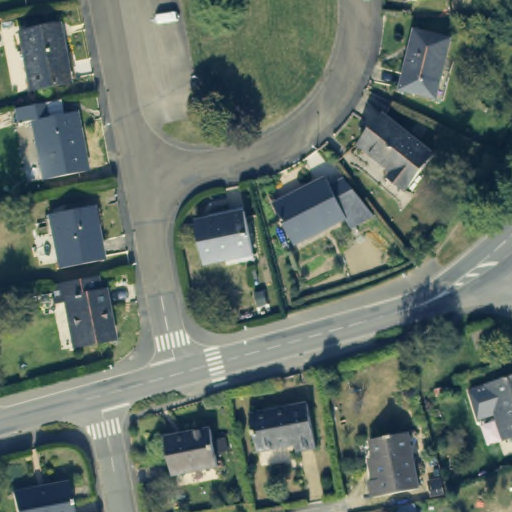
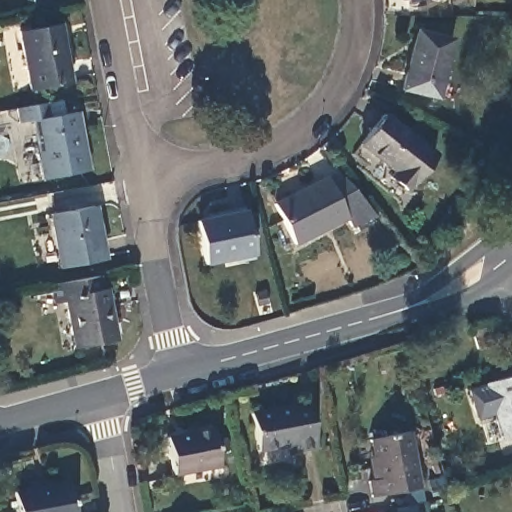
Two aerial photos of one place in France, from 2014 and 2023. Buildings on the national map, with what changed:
unchanged [(22,31),(60,24),(71,81),(33,88),(22,31)]
unchanged [(420,33),(453,39),(443,94),(410,88),(420,33)]
unchanged [(56,114),(79,110),(89,166),(48,174),(38,117),(21,120),(19,107),(54,100),(56,114)]
unchanged [(438,150),(410,190),(392,177),(397,169),(364,145),(386,113),(438,150)]
unchanged [(350,227),(346,216),(292,241),(273,200),(326,175),(330,184),(341,178),(375,216),(350,227)]
unchanged [(55,212),(95,205),(105,255),(65,262),(55,212)]
unchanged [(202,219),(246,209),(255,249),(210,258),(202,219)]
unchanged [(105,289),(111,288),(120,337),(79,345),(69,295),(61,296),(58,281),(101,273),(105,289)]
unchanged [(512,373),(512,434),(506,436),(499,409),(480,415),(472,386),(491,381),(490,380),(512,373)]
unchanged [(251,416),(308,405),(316,450),(296,454),(295,445),(280,447),(281,451),(258,455),(251,416)]
unchanged [(421,485),(375,495),(371,478),(380,476),(371,437),(410,430),(421,485)]
unchanged [(166,440),(210,431),(217,467),(173,476),(166,440)]
unchanged [(74,512),(17,512),(14,496),(69,485),(74,512)]

